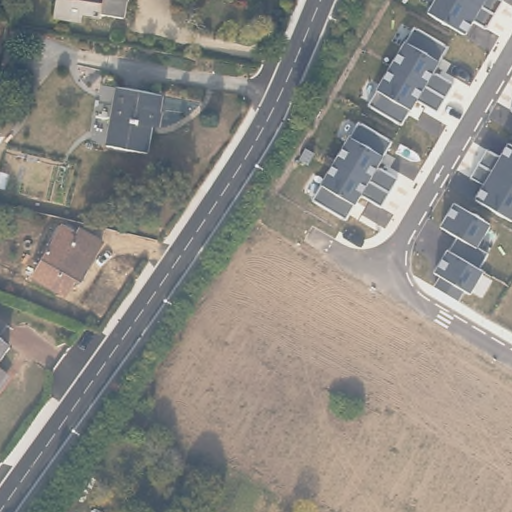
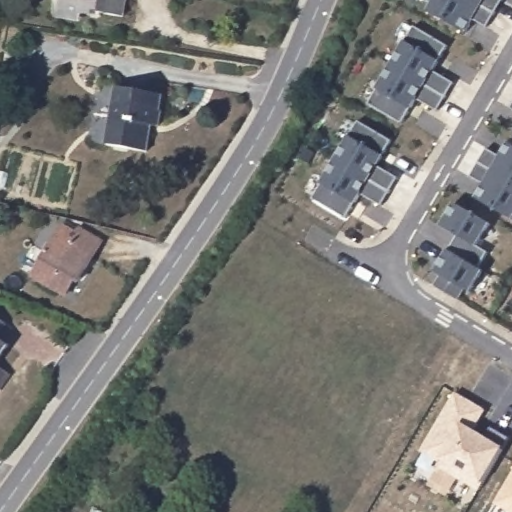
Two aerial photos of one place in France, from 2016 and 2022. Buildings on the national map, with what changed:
unchanged [(53,18),(54,13),(57,0),(125,0),(121,21),(100,17),(99,20),(84,18),(83,23),(53,18)]
unchanged [(466,33),(428,12),(435,0),(502,0),(487,26),(474,17),(466,33)]
unchanged [(370,104),(377,90),(405,42),(415,26),(448,47),(433,73),(453,83),(437,110),(417,99),(411,108),(401,121),(370,104)]
unchanged [(155,101),(152,116),(156,117),(153,133),(143,131),(138,157),(98,149),(109,92),(155,101)]
unchanged [(383,155),(378,166),(396,177),(381,205),(360,193),(355,204),(346,218),(313,199),(357,121),(392,141),(383,155)]
unchanged [(474,177),(487,150),(500,157),(507,145),(512,148),(512,220),(476,198),(485,183),(474,177)]
unchanged [(489,224),(478,246),(488,253),(479,269),(483,271),(471,293),(468,290),(460,300),(436,285),(441,275),(435,272),(447,249),(458,235),(441,226),(453,203),(489,224)]
unchanged [(70,238),(73,235),(94,245),(72,286),(68,284),(59,299),(27,281),(55,230),(70,238)]
new [(480,487),(477,491),(436,466),(437,461),(420,450),(455,392),(487,410),(474,429),(504,447),(480,487)]
new [(507,512),(493,504),(512,472),(512,512),(507,512)]

